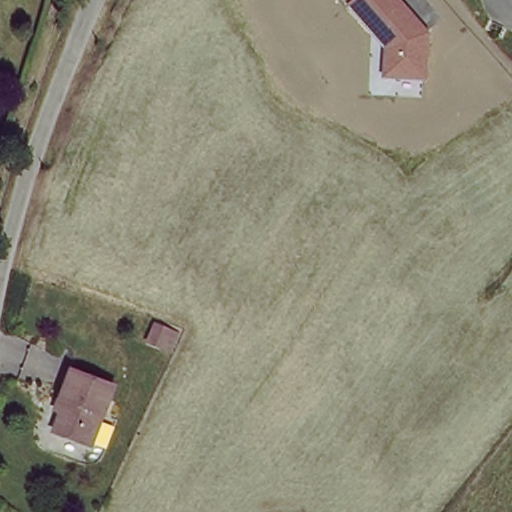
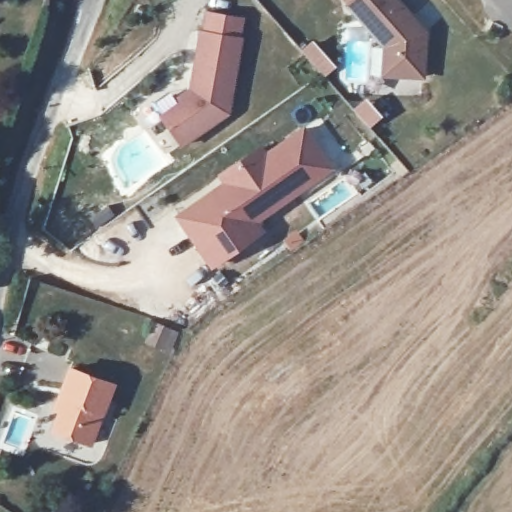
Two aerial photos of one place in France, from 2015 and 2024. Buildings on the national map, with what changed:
unchanged [(425,79),(381,76),(383,46),(343,0),(400,0),(428,31),(425,79)]
new [(242,21),(229,117),(178,151),(155,120),(185,95),(193,37),(198,38),(201,16),(242,21)]
new [(220,189),(214,181),(259,150),(264,155),(304,127),(332,170),(258,225),(262,232),(210,270),(173,222),(220,189)]
unchanged [(69,371),(115,387),(93,447),(58,435),(64,415),(55,412),(69,371)]

